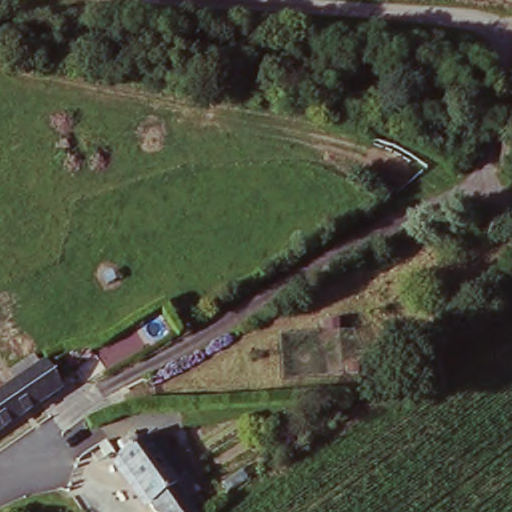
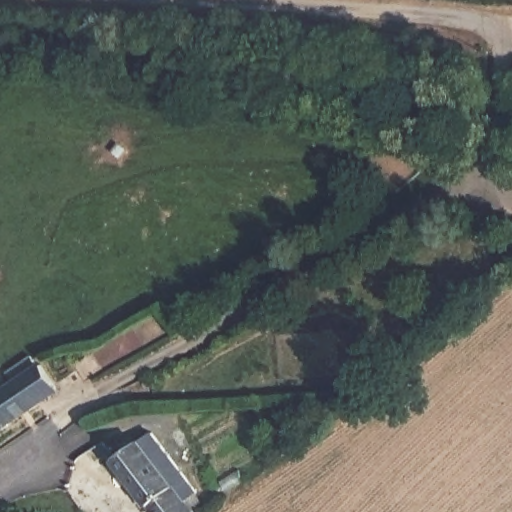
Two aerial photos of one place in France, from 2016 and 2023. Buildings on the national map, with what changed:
unchanged [(12,366),(36,350),(43,361),(46,360),(65,385),(0,428),(0,391),(20,377),(12,366)]
unchanged [(111,460),(149,432),(194,493),(192,495),(200,504),(188,511),(189,512),(151,512),(111,460)]

